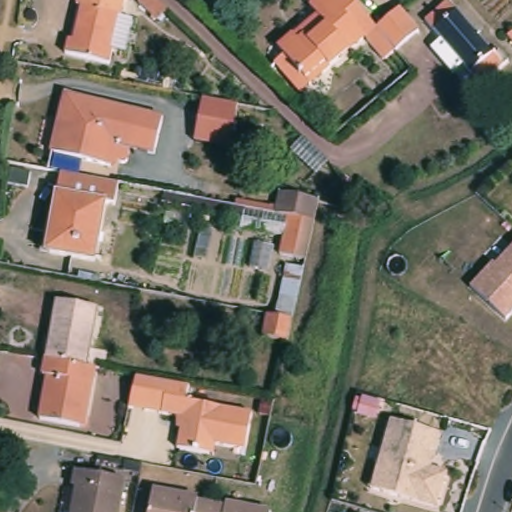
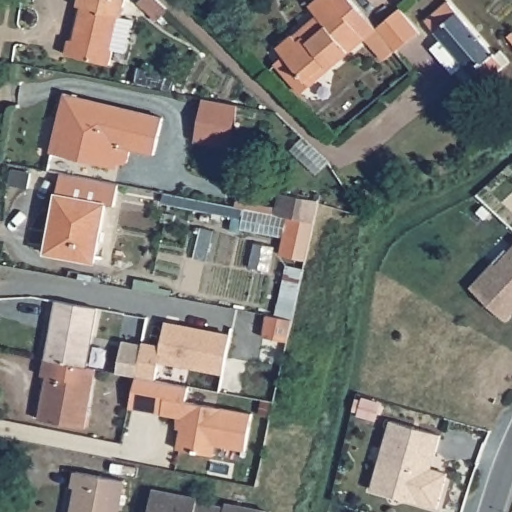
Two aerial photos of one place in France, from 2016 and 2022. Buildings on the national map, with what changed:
unchanged [(67,40),(71,42),(78,8),(75,7),(76,0),(125,0),(120,17),(133,20),(125,52),(113,51),(109,66),(63,57),(67,40)]
unchanged [(147,0),(165,0),(175,10),(166,20),(146,2),(147,0)]
unchanged [(283,55),(277,49),(294,34),(294,35),(317,15),(310,7),(319,0),(354,0),(379,28),(390,20),(403,10),(421,31),(398,51),(384,63),(365,42),(310,87),(300,95),(274,64),(283,55)]
unchanged [(496,56),(503,51),(512,61),(482,84),(474,75),(472,76),(464,67),(456,72),(435,49),(443,42),(436,33),(438,30),(430,20),(451,4),(496,56)]
unchanged [(113,167),(54,154),(63,117),(68,96),(73,97),(166,121),(159,154),(136,149),(131,165),(128,166),(123,164),(121,170),(113,167)]
new [(203,99),(239,105),(231,147),(196,141),(203,99)]
unchanged [(114,203),(108,203),(96,262),(47,253),(63,174),(118,184),(114,203)]
unchanged [(274,215),(279,194),(319,201),(318,204),(314,222),(313,222),(305,261),(278,254),(286,217),(274,215)]
unchanged [(242,200),(254,202),(252,209),(245,208),(240,207),(242,200)]
unchanged [(473,287),(494,263),(497,265),(512,248),(512,318),(510,321),(473,287)]
unchanged [(265,315),(274,317),(283,275),(301,278),(291,319),(286,342),(260,337),(265,315)]
unchanged [(51,336),(54,336),(60,302),(100,309),(88,367),(46,359),(51,336)]
new [(158,362),(156,377),(154,376),(153,381),(117,373),(124,341),(143,345),(144,342),(163,345),(166,321),(231,333),(224,374),(158,362)]
unchanged [(89,415),(84,415),(81,427),(40,420),(49,377),(43,375),(46,359),(88,367),(99,368),(89,415)]
unchanged [(206,386),(203,401),(256,412),(248,448),(219,442),(213,442),(211,452),(180,446),(184,426),(180,425),(179,413),(146,407),(154,376),(206,386)]
unchanged [(379,468),(392,422),(443,436),(436,457),(433,470),(449,475),(439,510),(384,494),(372,491),(379,468)]
unchanged [(81,512),(81,505),(78,504),(81,489),(74,487),(76,471),(126,480),(120,512),(81,512)]
unchanged [(200,500),(199,503),(226,507),(226,503),(252,508),(270,512),(150,512),(154,492),(200,500)]
unchanged [(81,512),(73,512),(73,510),(81,512)]

